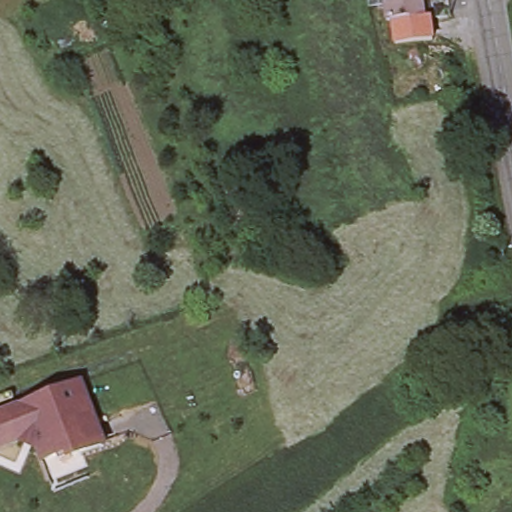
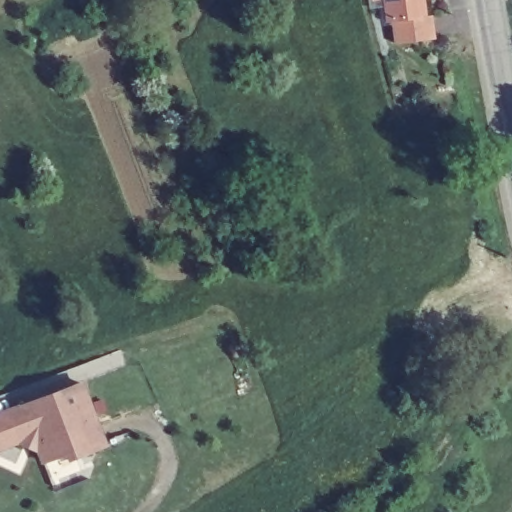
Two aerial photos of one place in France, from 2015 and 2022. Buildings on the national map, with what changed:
unchanged [(427,24),(390,29),(387,5),(381,6),(381,0),(419,0),(419,1),(424,0),(427,24)]
unchanged [(38,442),(26,438),(0,448),(0,415),(83,382),(103,433),(74,448),(61,453),(45,461),(38,442)]
unchanged [(107,443),(78,455),(74,448),(61,453),(103,433),(107,443)]

